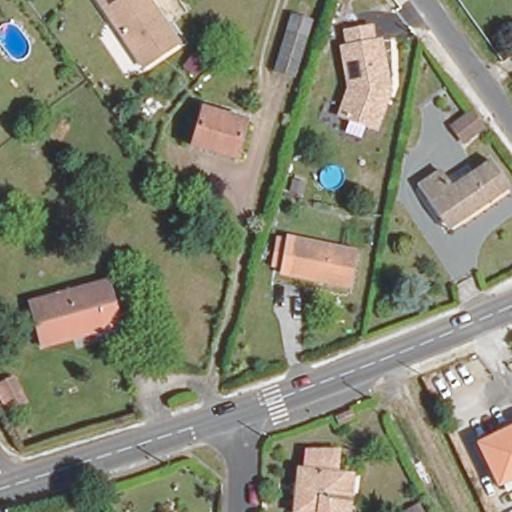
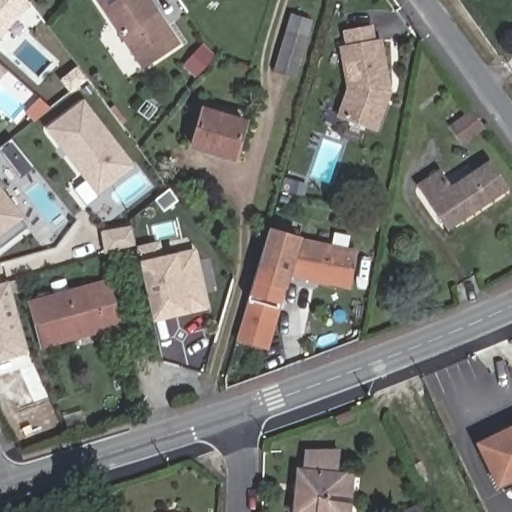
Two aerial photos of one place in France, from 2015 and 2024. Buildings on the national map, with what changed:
new [(30,6),(0,38),(0,0),(24,0),(30,6)]
unchanged [(141,70),(95,0),(153,0),(184,47),(141,70)]
unchanged [(270,72),(282,34),(284,34),(288,13),(313,21),(308,41),(295,80),(270,72)]
unchanged [(346,46),(344,30),(374,25),(377,38),(384,37),(395,90),(380,132),(338,119),(349,89),(339,47),(346,46)]
unchanged [(221,54),(193,81),(180,68),(209,41),(221,54)]
new [(97,196),(45,128),(83,99),(135,166),(97,196)]
unchanged [(247,123),(237,164),(192,151),(201,110),(247,123)]
unchanged [(470,110),(481,128),(466,137),(455,121),(470,110)]
new [(0,152),(0,148),(11,139),(34,168),(21,178),(0,152)]
unchanged [(428,195),(415,174),(438,161),(449,177),(471,165),(493,153),(512,180),(512,186),(506,190),(463,215),(446,224),(435,206),(428,195)]
new [(24,218),(0,236),(0,187),(24,218)]
new [(302,237),(291,278),(288,289),(283,288),(279,304),(250,295),(268,228),(302,237)]
new [(350,289),(291,278),(302,237),(356,249),(350,289)]
new [(190,313),(154,321),(140,261),(135,246),(158,241),(162,256),(177,253),(195,249),(208,309),(190,313)]
demolished [(280,276),(283,241),(357,247),(354,284),(280,276)]
new [(8,281),(27,349),(0,357),(0,284),(8,281)]
unchanged [(89,336),(42,349),(28,305),(105,284),(112,313),(117,329),(89,336)]
new [(266,350),(234,341),(246,300),(278,309),(266,350)]
unchanged [(0,394),(0,385),(17,373),(37,403),(12,417),(0,394)]
unchanged [(512,428),(512,477),(500,483),(480,443),(512,428)]
unchanged [(353,512),(290,512),(291,496),(304,497),(307,448),(350,450),(348,501),(354,501),(353,512)]

